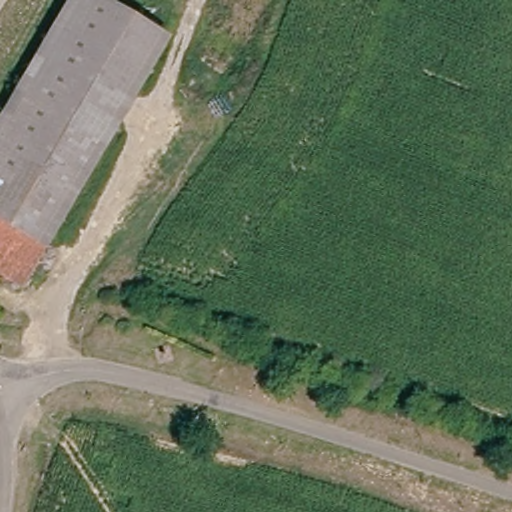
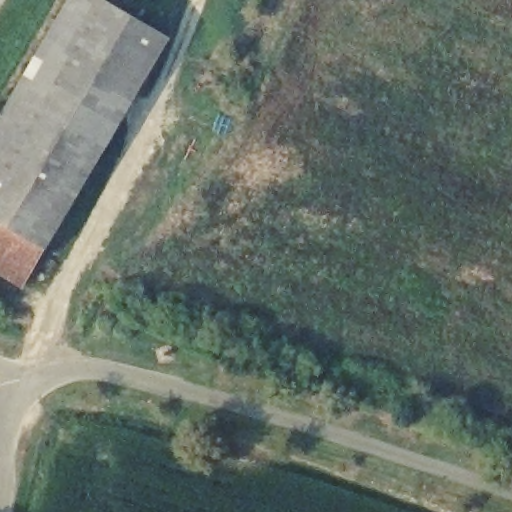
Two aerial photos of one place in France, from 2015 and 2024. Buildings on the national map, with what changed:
unchanged [(97,0),(163,37),(145,70),(81,187),(49,246),(0,220),(0,172),(38,103),(67,48),(94,0),(97,0)]
unchanged [(49,246),(25,289),(0,274),(0,220),(49,246)]

